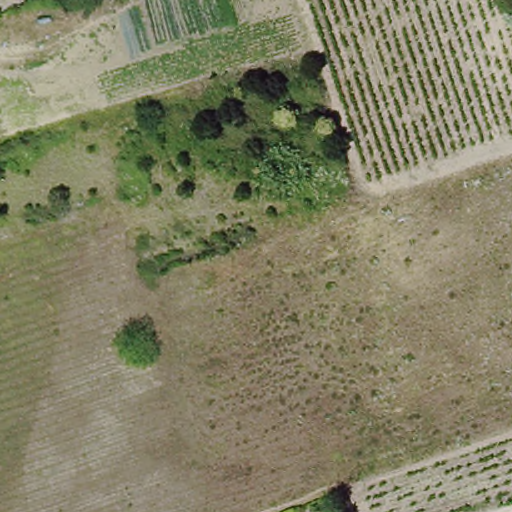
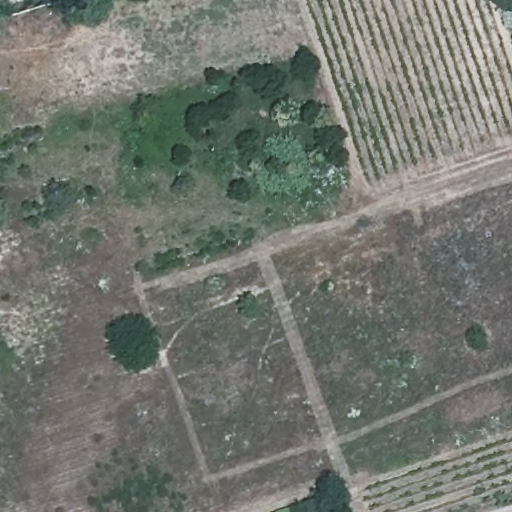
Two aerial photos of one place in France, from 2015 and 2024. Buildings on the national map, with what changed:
[]

